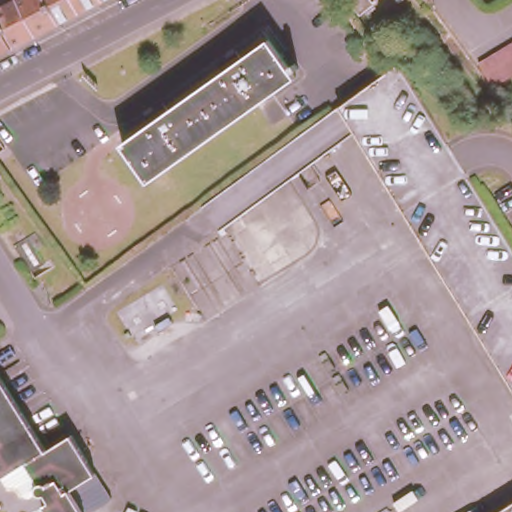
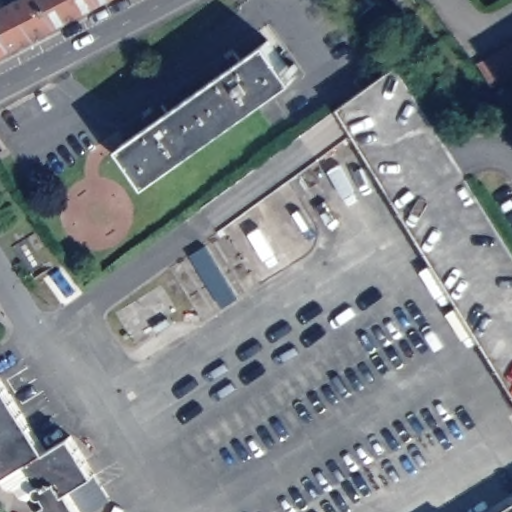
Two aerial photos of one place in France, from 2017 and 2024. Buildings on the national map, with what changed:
unchanged [(5,0),(43,0),(56,26),(33,37),(11,49),(0,55),(0,11),(8,6),(5,0)]
unchanged [(79,14),(56,26),(43,0),(106,0),(101,2),(79,14)]
unchanged [(145,111),(162,98),(168,106),(224,66),(218,59),(237,46),(241,54),(270,34),(297,72),(148,177),(122,139),(150,119),(145,111)]
unchanged [(512,42),(512,74),(486,90),(472,66),(512,42)]
unchanged [(340,106),(399,67),(456,158),(512,249),(512,390),(354,130),(340,106)]
unchanged [(41,265),(26,274),(10,246),(25,237),(41,265)]
unchanged [(47,451),(73,436),(96,475),(71,490),(85,512),(50,512),(45,504),(50,500),(45,492),(43,492),(41,490),(40,488),(40,485),(28,465),(0,481),(0,375),(47,451)]
unchanged [(512,504),(512,512),(499,512),(512,504)]

